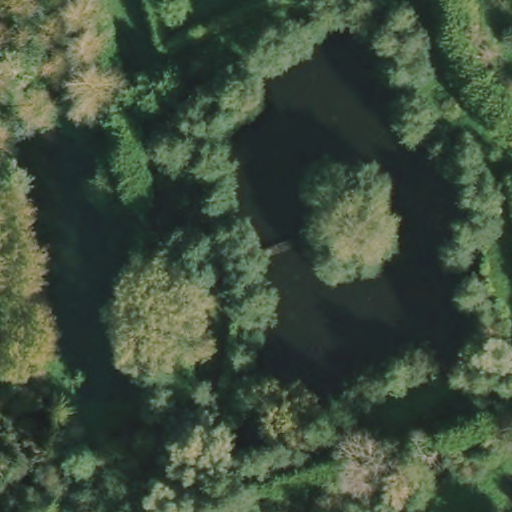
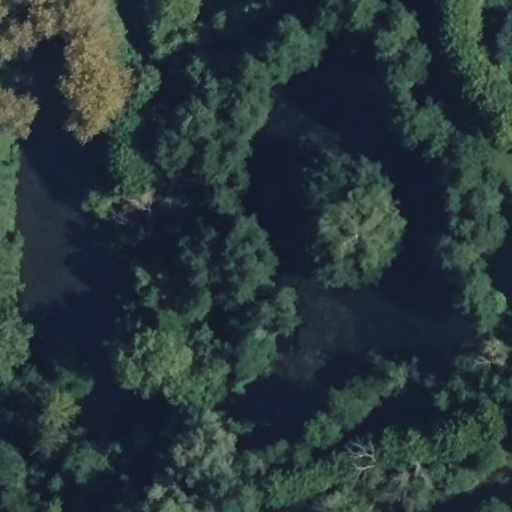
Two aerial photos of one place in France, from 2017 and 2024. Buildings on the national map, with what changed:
unchanged [(136,148),(167,147),(173,184),(140,190),(136,148)]
unchanged [(144,201),(179,200),(178,231),(145,234),(144,201)]

